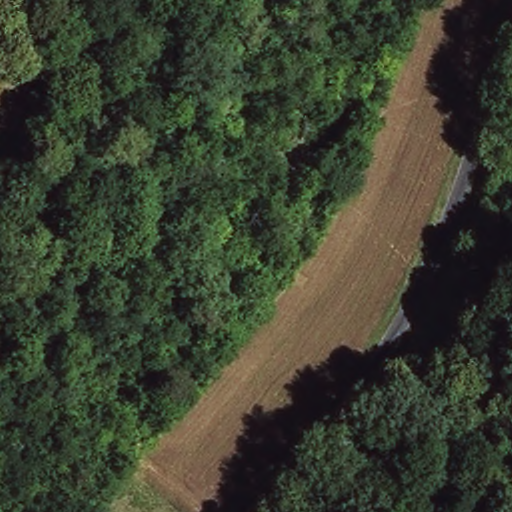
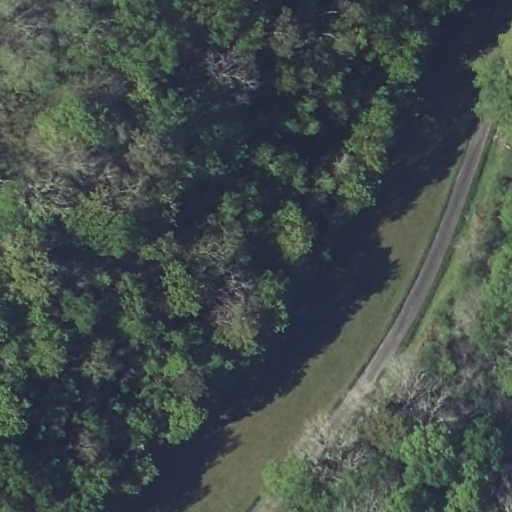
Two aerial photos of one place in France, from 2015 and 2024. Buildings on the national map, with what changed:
[]

